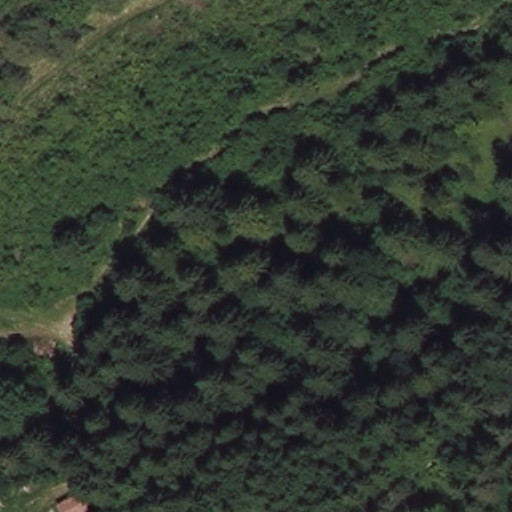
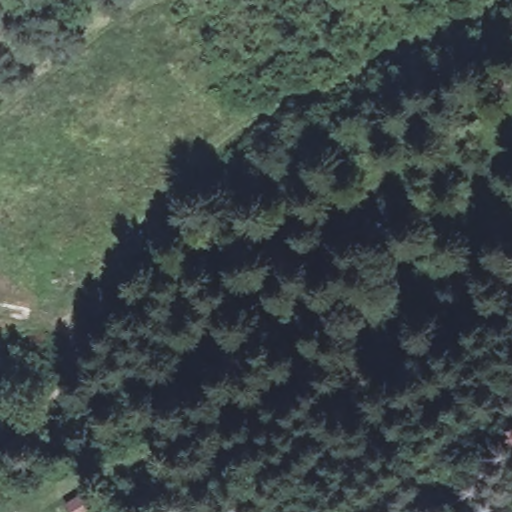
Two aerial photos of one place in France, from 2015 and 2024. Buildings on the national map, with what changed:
[]

